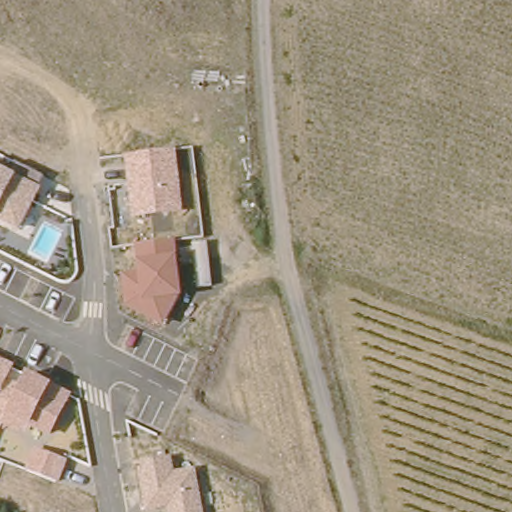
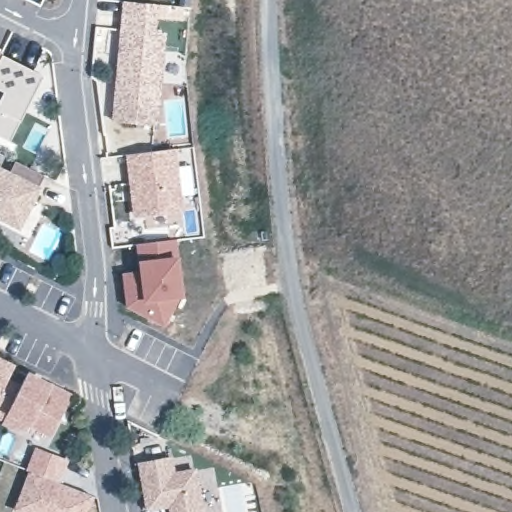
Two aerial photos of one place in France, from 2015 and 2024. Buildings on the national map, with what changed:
new [(111,123),(122,2),(159,5),(156,33),(166,34),(158,129),(111,123)]
new [(1,120),(0,119),(0,60),(41,81),(27,108),(17,128),(1,120)]
unchanged [(134,218),(125,158),(177,150),(183,210),(134,218)]
unchanged [(43,189),(20,231),(0,222),(0,167),(1,167),(5,158),(43,176),(43,189)]
unchanged [(182,295),(165,328),(126,312),(120,274),(138,271),(137,259),(135,246),(175,239),(177,255),(182,295)]
unchanged [(51,436),(34,428),(27,436),(2,422),(0,420),(0,358),(13,364),(27,373),(56,387),(72,395),(51,436)]
unchanged [(59,483),(25,469),(35,447),(69,462),(59,483)]
unchanged [(168,509),(146,512),(136,464),(171,457),(175,472),(193,469),(203,512),(169,512),(168,509)]
new [(59,483),(95,497),(89,512),(20,512),(15,510),(28,471),(59,483)]

